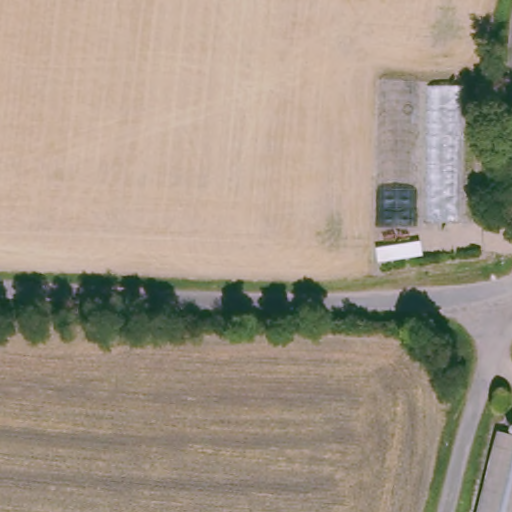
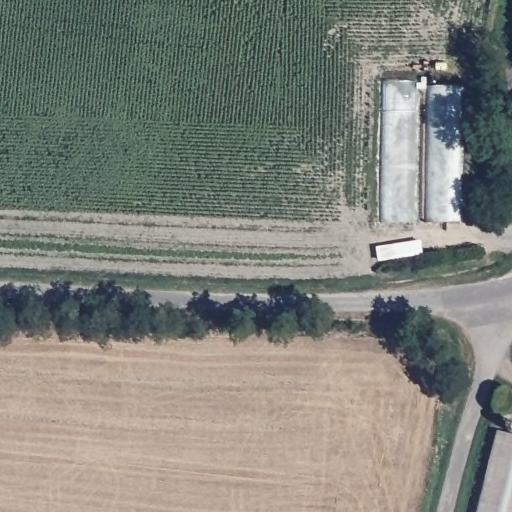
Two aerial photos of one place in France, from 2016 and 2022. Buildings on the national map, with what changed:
unchanged [(475,512),(495,433),(512,437),(512,512),(475,512)]

